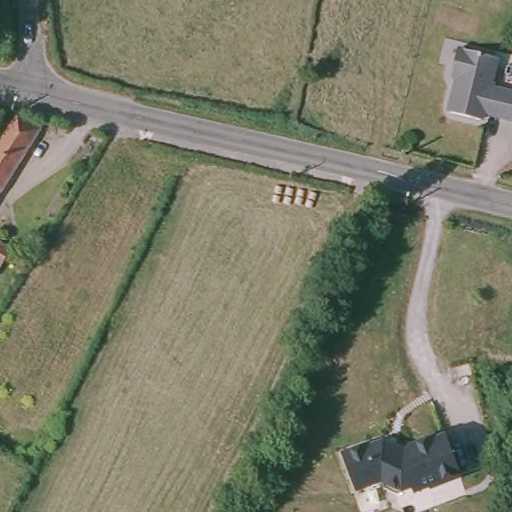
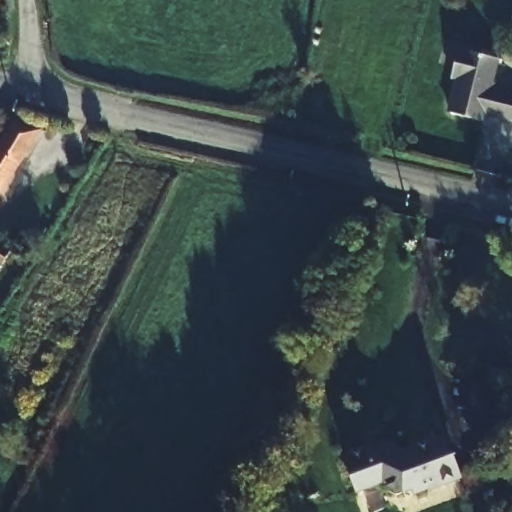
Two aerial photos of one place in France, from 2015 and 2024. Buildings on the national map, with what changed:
unchanged [(496,54),(488,86),(512,91),(512,110),(510,120),(481,114),(479,122),(445,114),(456,68),(450,65),(455,44),(496,54)]
unchanged [(20,121),(39,133),(0,196),(0,153),(20,121)]
unchanged [(10,252),(0,270),(0,245),(10,252)]
unchanged [(395,438),(402,446),(447,432),(453,448),(460,446),(469,472),(462,474),(463,478),(430,492),(428,489),(412,494),(411,491),(397,495),(383,489),(381,483),(354,492),(341,454),(395,438)]

